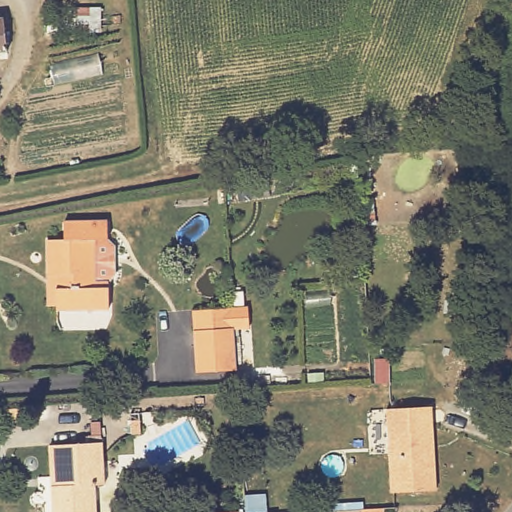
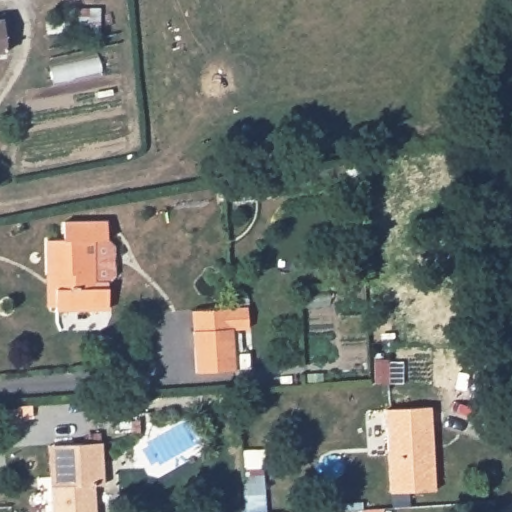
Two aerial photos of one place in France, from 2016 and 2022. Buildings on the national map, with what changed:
unchanged [(7,53),(0,54),(0,20),(3,19),(7,53)]
unchanged [(46,237),(64,237),(63,219),(106,219),(107,238),(114,244),(114,274),(107,280),(108,307),(55,308),(55,303),(48,304),(47,282),(47,272),(46,237)]
unchanged [(190,320),(189,304),(231,301),(232,318),(236,360),(194,363),(190,320)]
unchanged [(432,405),(435,488),(390,489),(387,405),(432,405)]
unchanged [(21,422),(0,424),(0,412),(20,410),(21,422)]
unchanged [(56,483),(55,441),(105,439),(108,484),(99,484),(99,512),(55,512),(53,484),(56,483)]
unchanged [(274,504),(275,512),(245,512),(244,506),(274,504)]
unchanged [(236,505),(237,512),(204,512),(204,508),(236,505)]

